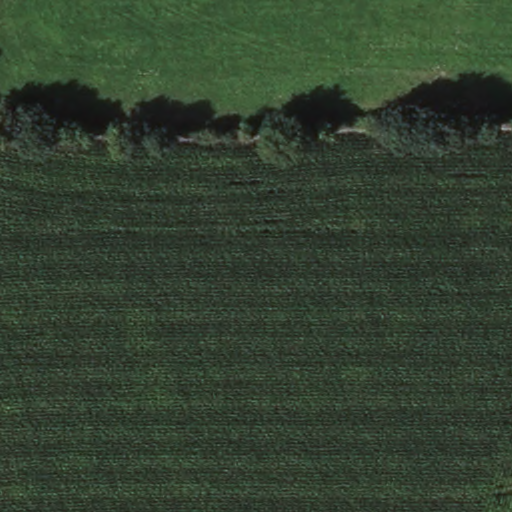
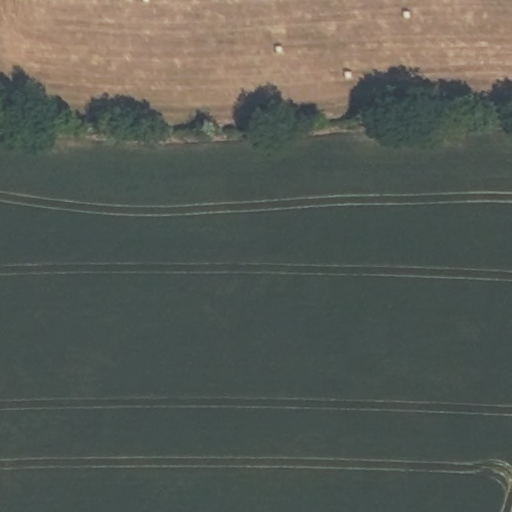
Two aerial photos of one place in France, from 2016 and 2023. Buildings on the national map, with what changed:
[]

